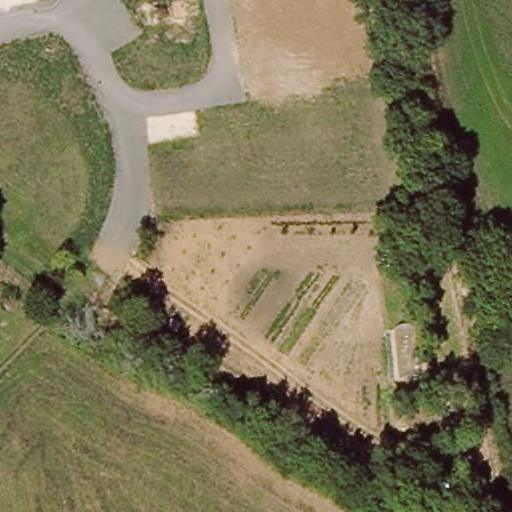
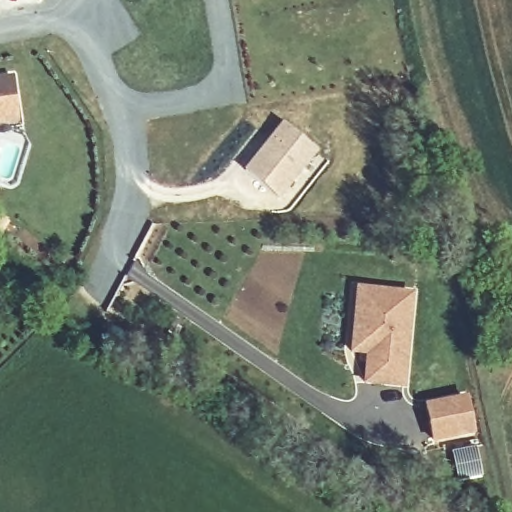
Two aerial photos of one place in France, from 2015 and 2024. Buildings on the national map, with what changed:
unchanged [(21,118),(0,121),(0,76),(14,73),(21,118)]
new [(281,121),(318,150),(279,199),(242,170),(281,121)]
new [(405,388),(361,384),(364,356),(348,355),(355,286),(415,292),(405,388)]
new [(467,394),(474,433),(431,441),(423,403),(467,394)]

